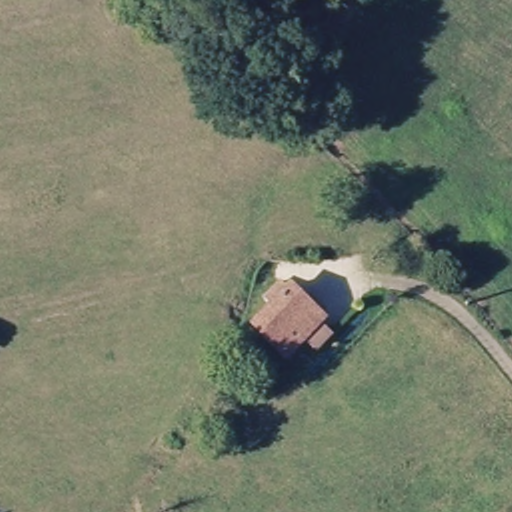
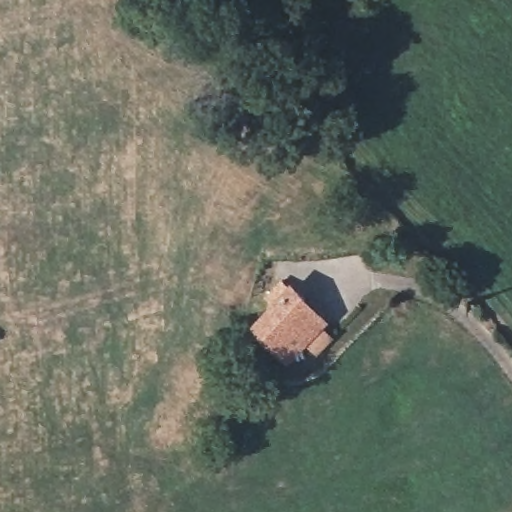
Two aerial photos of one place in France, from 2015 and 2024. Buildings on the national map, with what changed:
unchanged [(326,311),(291,353),(264,325),(297,286),(326,311)]

